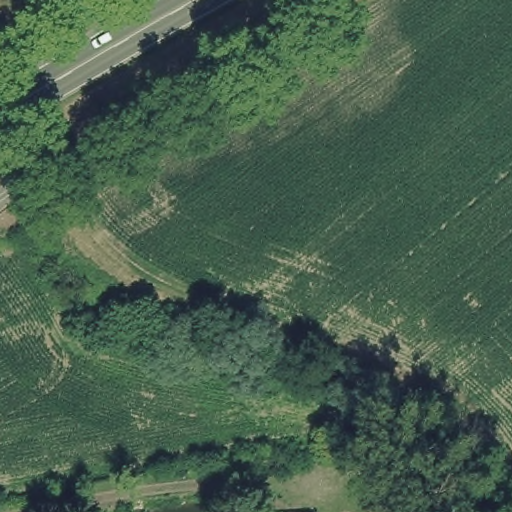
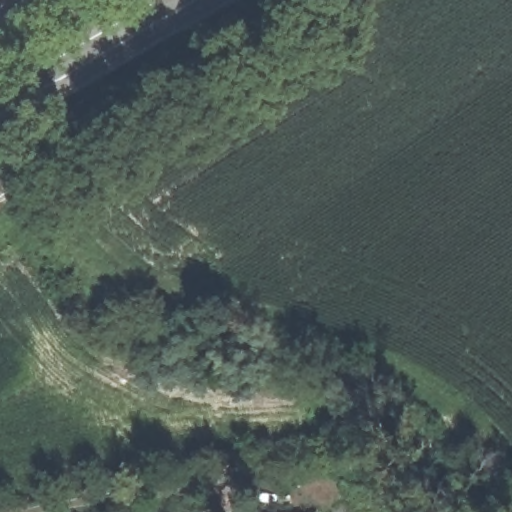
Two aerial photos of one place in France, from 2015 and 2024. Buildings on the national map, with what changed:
unchanged [(287,507),(288,512),(253,512),(287,507)]

